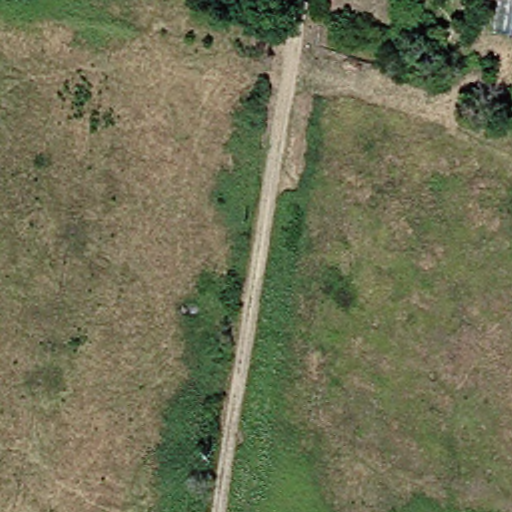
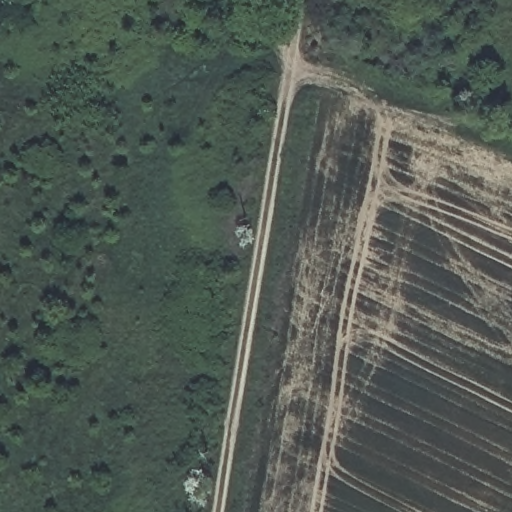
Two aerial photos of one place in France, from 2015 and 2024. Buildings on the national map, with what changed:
new [(503,0),(512,0),(512,35),(497,33),(503,0)]

